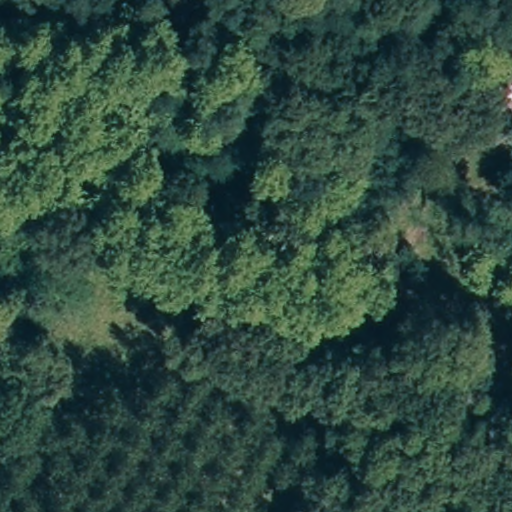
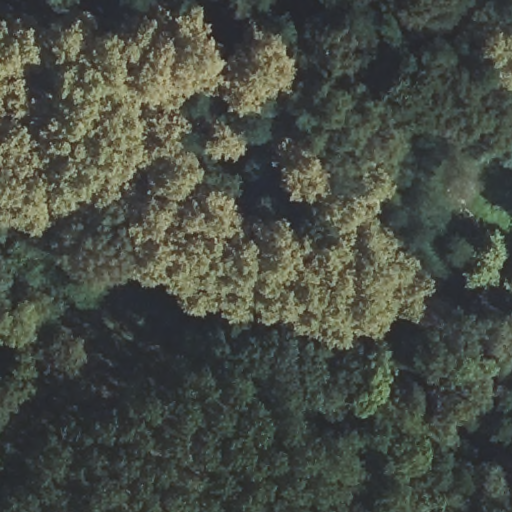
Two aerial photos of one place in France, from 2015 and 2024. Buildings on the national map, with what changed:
[]

